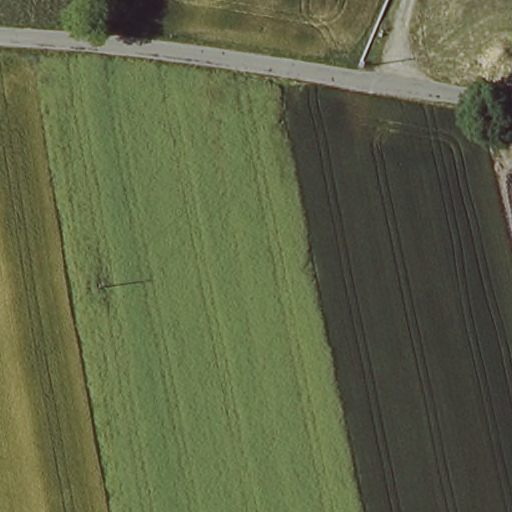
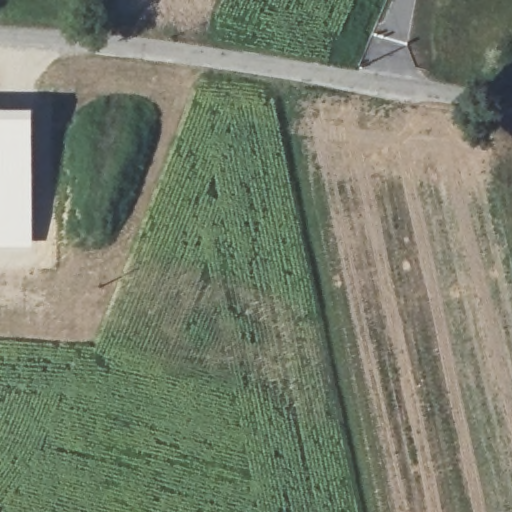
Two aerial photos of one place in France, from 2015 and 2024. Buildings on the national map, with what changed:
new [(33,186),(32,247),(0,247),(0,110),(33,110),(33,186)]

